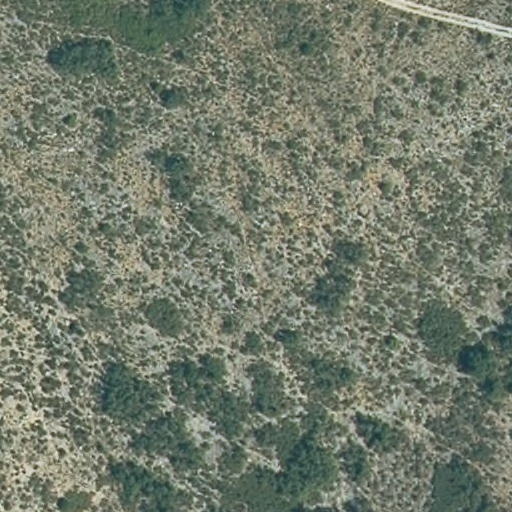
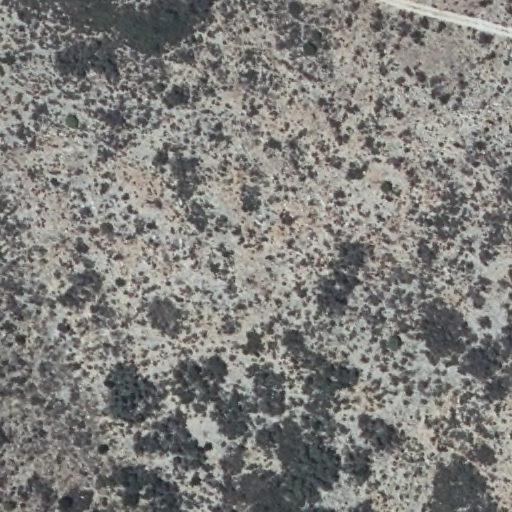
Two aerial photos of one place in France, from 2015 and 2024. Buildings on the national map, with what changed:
[]

